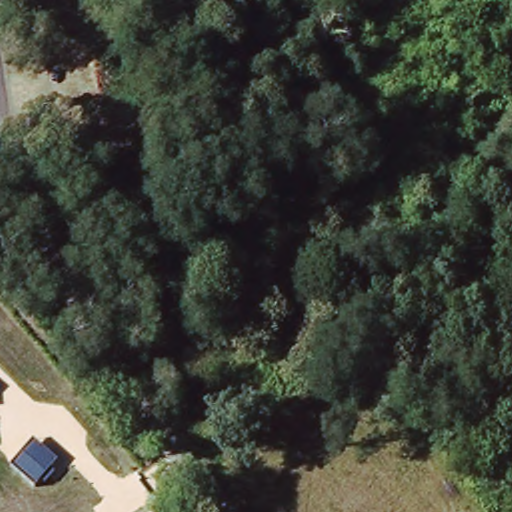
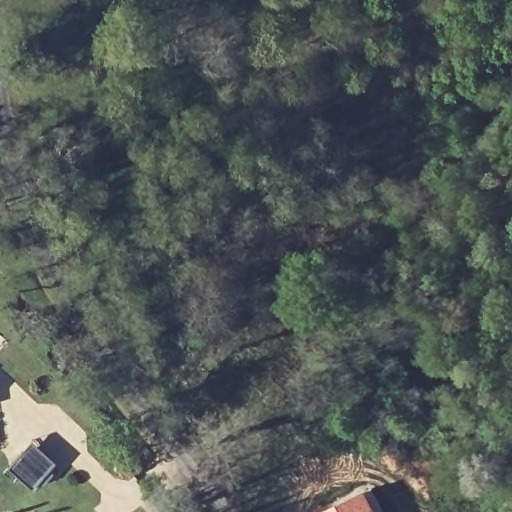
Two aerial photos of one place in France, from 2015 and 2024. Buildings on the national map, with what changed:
unchanged [(58,462),(35,487),(10,465),(32,439),(58,462)]
new [(366,489),(379,512),(322,512),(366,489)]

